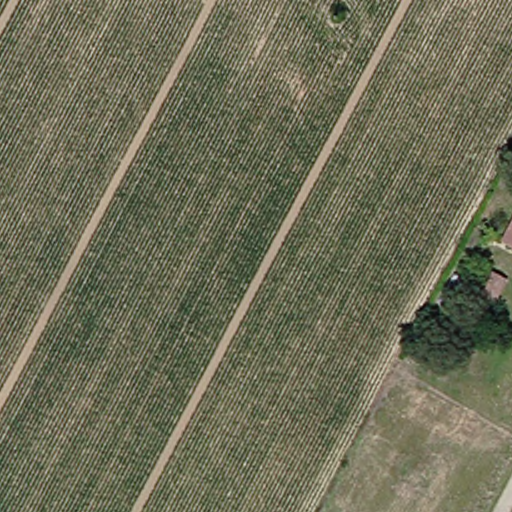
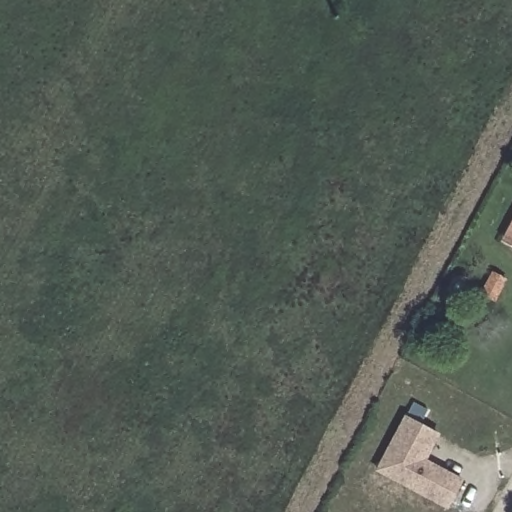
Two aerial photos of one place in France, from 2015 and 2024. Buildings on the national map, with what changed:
unchanged [(512,246),(491,234),(512,194),(512,246)]
unchanged [(496,300),(482,293),(492,273),(506,280),(496,300)]
new [(431,462),(462,479),(447,506),(377,468),(406,416),(438,433),(424,458),(431,462)]

